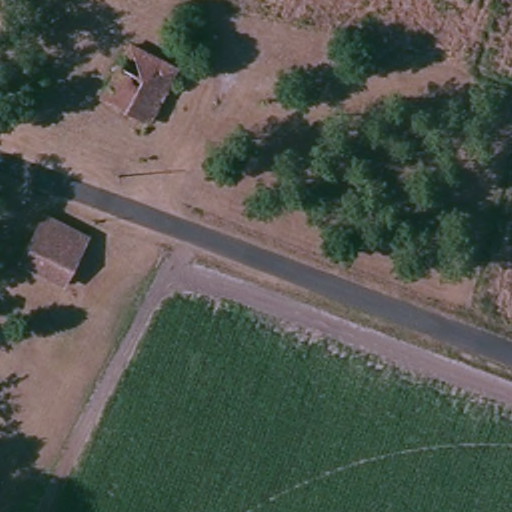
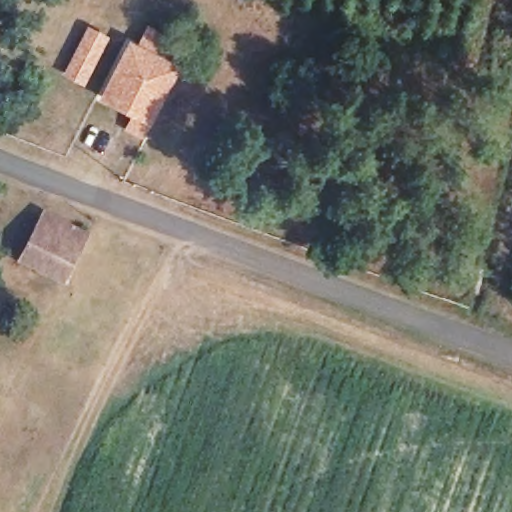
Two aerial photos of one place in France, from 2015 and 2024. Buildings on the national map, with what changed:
new [(85,85),(64,74),(88,25),(110,36),(85,85)]
unchanged [(146,131),(126,124),(132,109),(104,99),(122,45),(170,61),(146,131)]
unchanged [(75,272),(70,283),(24,265),(44,218),(90,237),(75,272)]

